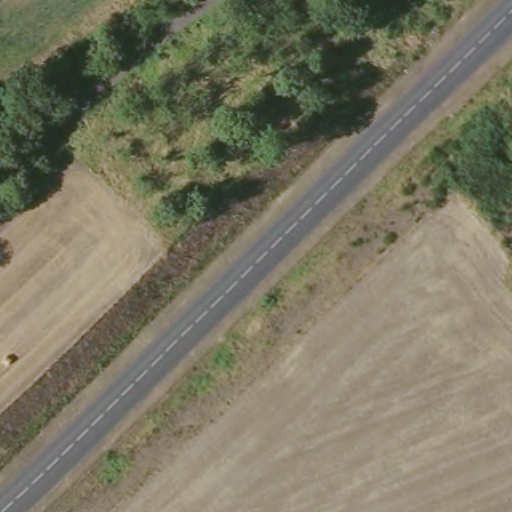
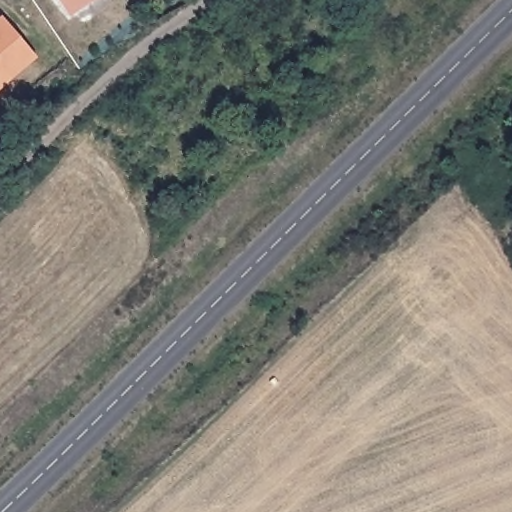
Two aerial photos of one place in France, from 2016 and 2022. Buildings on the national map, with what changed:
new [(55,0),(101,0),(70,22),(55,0)]
new [(0,97),(0,28),(5,24),(38,63),(0,97)]

